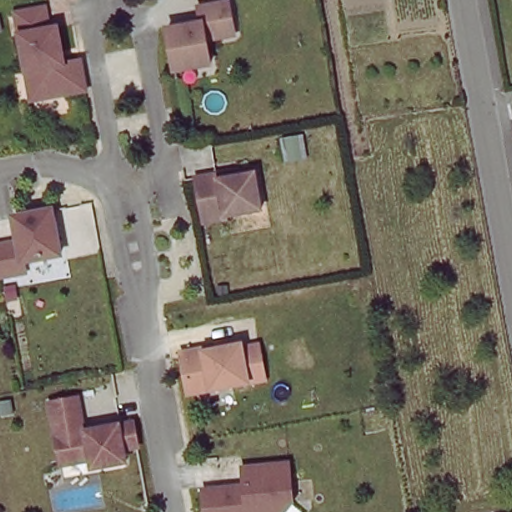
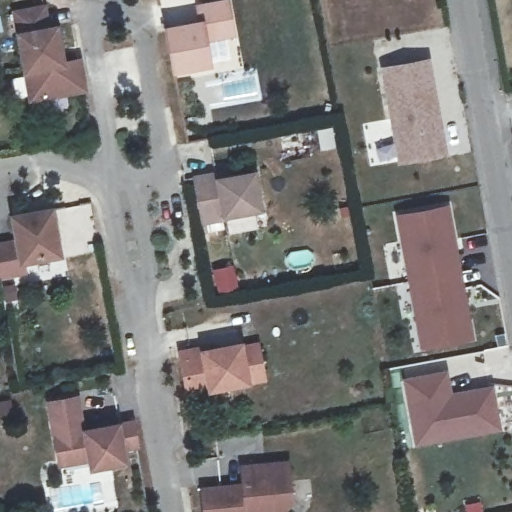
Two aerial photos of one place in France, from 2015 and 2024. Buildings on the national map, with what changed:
unchanged [(196,23),(193,7),(223,1),(229,35),(201,40),(205,65),(170,71),(162,30),(196,23)]
unchanged [(24,61),(15,13),(44,7),(48,29),(56,27),(63,63),(79,61),(80,66),(81,69),(85,90),(43,97),(31,99),(24,61)]
new [(431,58),(447,156),(398,166),(380,67),(431,58)]
demolished [(302,135),(306,155),(286,158),(283,138),(302,135)]
unchanged [(218,174),(219,180),(255,173),(262,210),(226,216),(226,219),(203,223),(195,178),(218,174)]
new [(449,205),(474,339),(420,351),(395,216),(449,205)]
unchanged [(11,244),(6,215),(49,206),(56,257),(25,262),(25,274),(0,278),(0,245),(11,244)]
unchanged [(241,345),(244,361),(260,358),(264,380),(188,394),(181,356),(241,345)]
new [(448,370),(453,392),(493,384),(501,430),(415,448),(403,378),(448,370)]
unchanged [(44,404),(72,399),(78,432),(128,423),(130,435),(132,447),(118,450),(120,463),(87,469),(85,460),(56,465),(54,455),(44,404)]
unchanged [(239,491),(237,473),(283,468),(287,506),(284,512),(199,512),(198,495),(239,491)]

